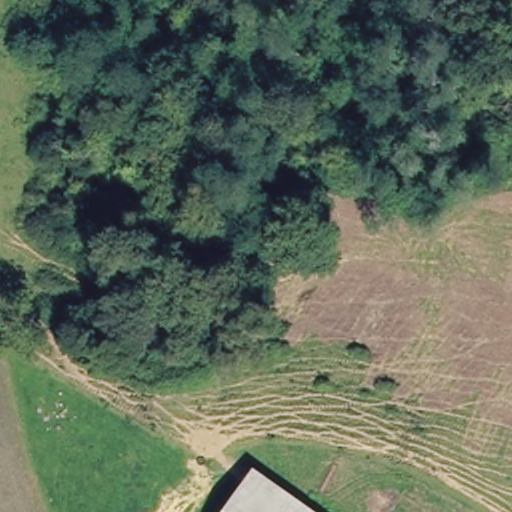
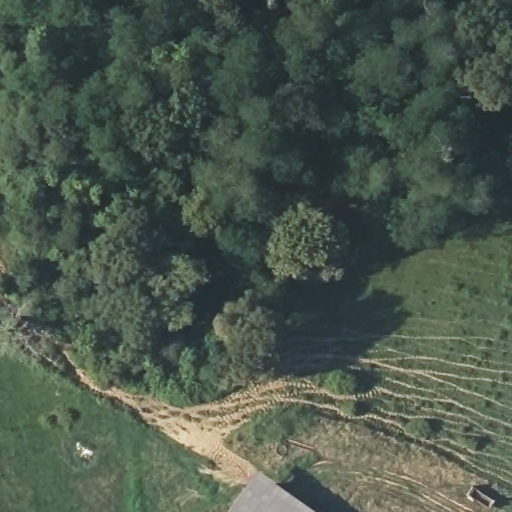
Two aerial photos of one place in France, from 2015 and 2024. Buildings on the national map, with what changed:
unchanged [(316,512),(222,512),(254,467),(316,512)]

